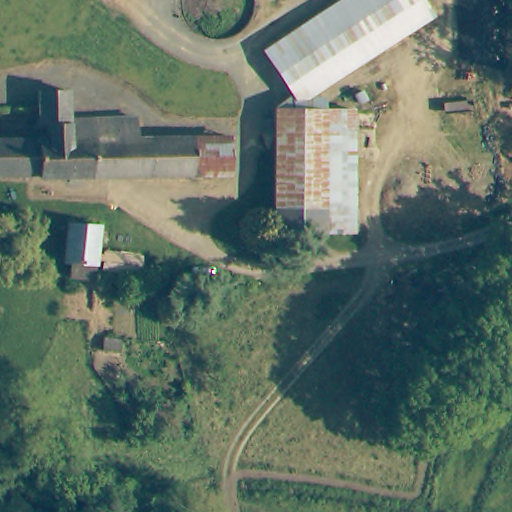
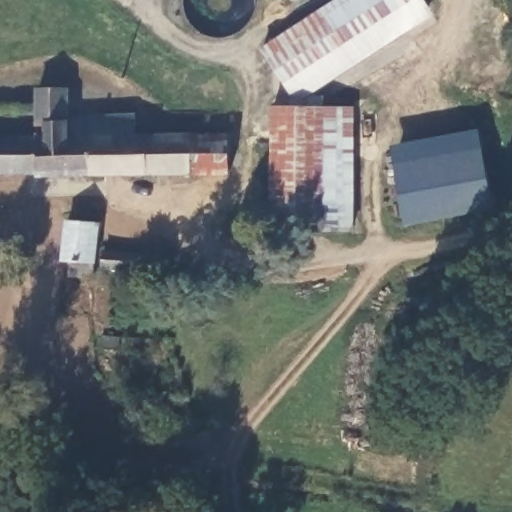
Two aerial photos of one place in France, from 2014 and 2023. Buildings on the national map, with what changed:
unchanged [(290,100),(261,55),(345,0),(418,0),(426,12),(290,100)]
unchanged [(36,177),(0,178),(0,139),(43,138),(43,123),(35,123),(35,107),(35,90),(67,88),(66,116),(73,116),(131,115),(133,135),(143,135),(194,135),(194,174),(38,181),(36,177)]
unchanged [(347,238),(315,236),(268,235),(271,140),(272,114),(352,117),(347,238)]
new [(495,209),(407,226),(391,146),(479,130),(495,209)]
unchanged [(232,175),(194,174),(194,135),(233,136),(232,175)]
unchanged [(85,220),(86,247),(86,258),(84,258),(79,258),(75,258),(54,258),(53,220),(85,220)]
unchanged [(91,263),(93,246),(124,248),(125,265),(91,263)]

